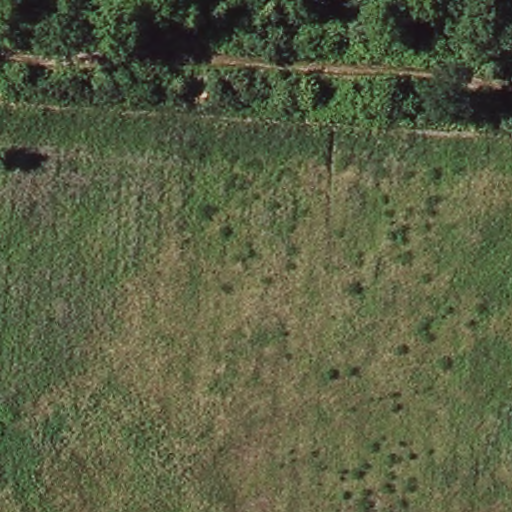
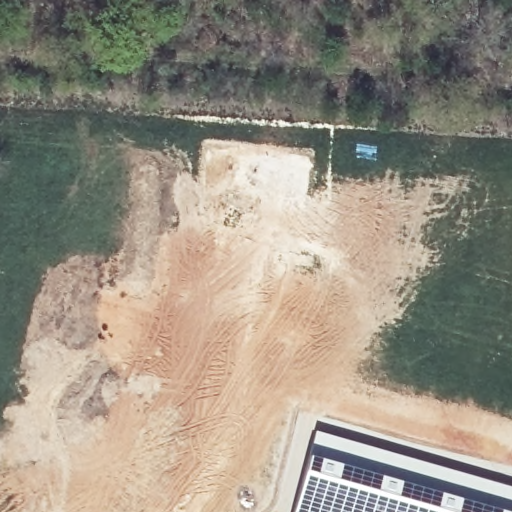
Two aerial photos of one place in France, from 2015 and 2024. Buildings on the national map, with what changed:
new [(297,481),(314,428),(439,465),(512,484),(512,512),(289,512),(297,481)]

